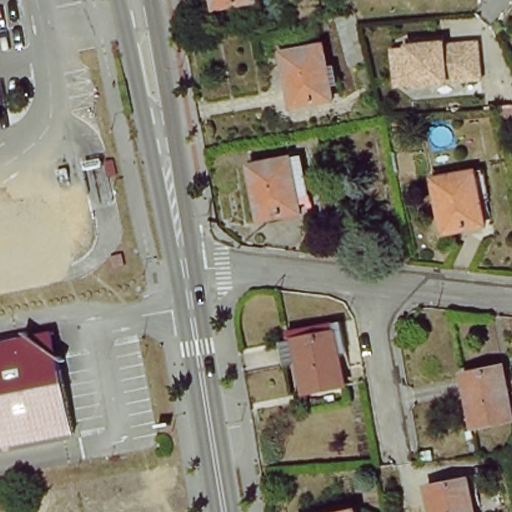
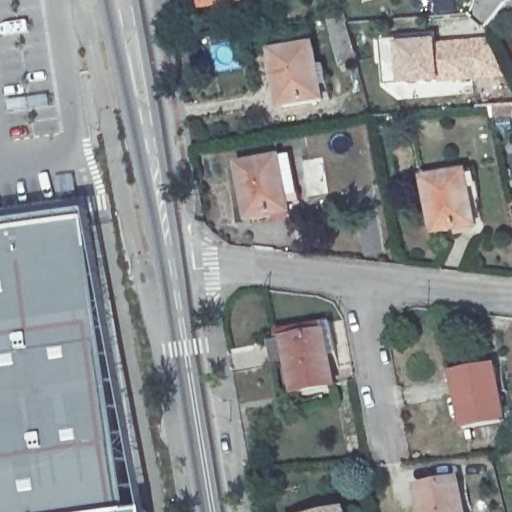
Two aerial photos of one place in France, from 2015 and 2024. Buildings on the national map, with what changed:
unchanged [(207,11),(205,0),(249,0),(250,3),(207,11)]
unchanged [(359,0),(378,0),(361,5),(359,0)]
unchanged [(468,48),(472,82),(404,89),(401,51),(400,46),(435,43),(436,48),(436,50),(468,48)]
unchanged [(279,58),(318,54),(324,104),(286,109),(279,58)]
unchanged [(246,169),(284,164),(291,217),(254,222),(246,169)]
unchanged [(427,187),(469,179),(478,229),(434,235),(427,187)]
demolished [(32,202),(44,264),(15,269),(3,207),(32,202)]
new [(0,234),(93,221),(146,512),(0,512),(0,234)]
demolished [(99,264),(116,259),(119,274),(102,278),(99,264)]
demolished [(61,434),(26,441),(0,446),(0,342),(38,334),(61,434)]
unchanged [(289,345),(326,337),(336,389),(299,397),(289,345)]
unchanged [(464,430),(455,377),(496,371),(504,423),(464,430)]
unchanged [(423,488),(459,481),(465,512),(427,512),(423,488)]

